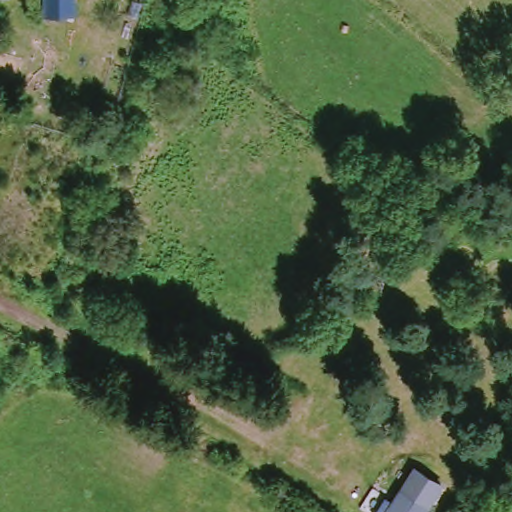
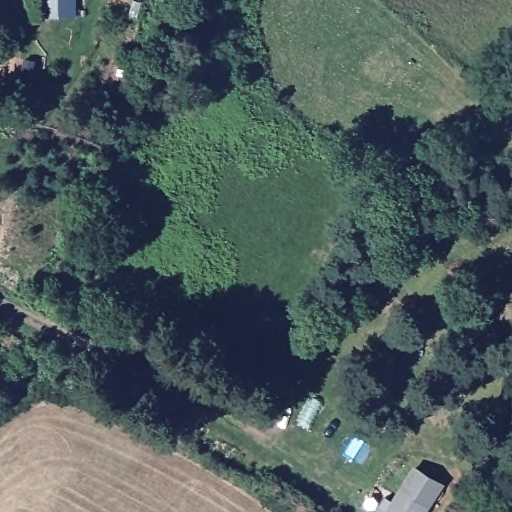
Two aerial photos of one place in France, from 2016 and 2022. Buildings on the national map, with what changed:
unchanged [(43,0),(75,0),(76,16),(43,17),(43,0)]
unchanged [(261,400),(252,416),(222,398),(230,382),(261,400)]
unchanged [(368,511),(380,492),(392,499),(411,470),(413,466),(439,482),(437,485),(420,512),(369,512),(368,511)]

